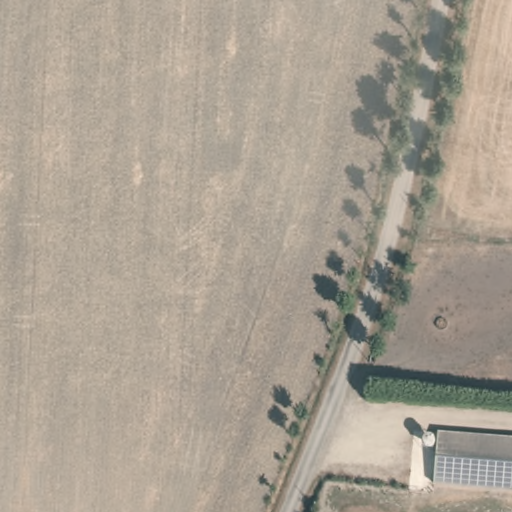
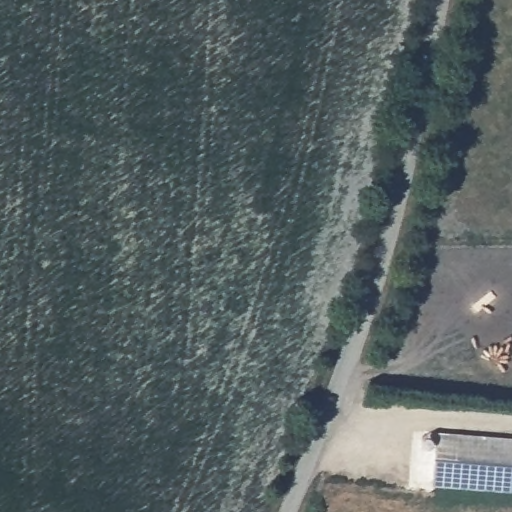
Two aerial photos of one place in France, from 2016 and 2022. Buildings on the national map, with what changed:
unchanged [(434,442),(512,447),(512,497),(432,492),(434,442)]

